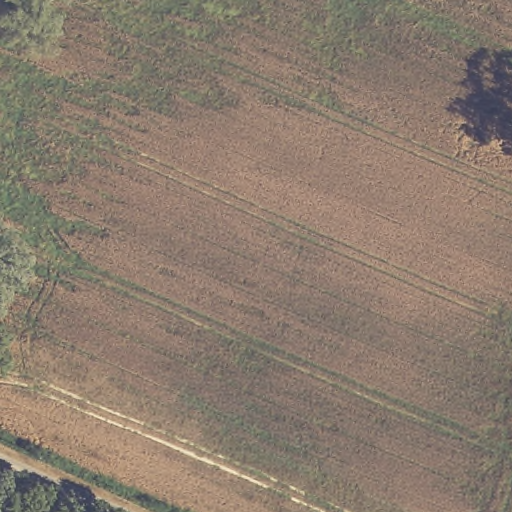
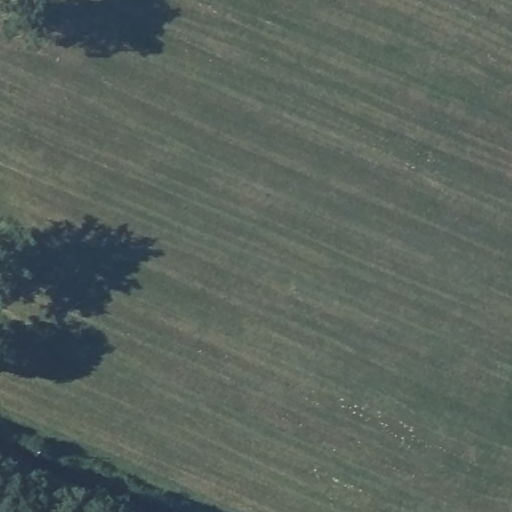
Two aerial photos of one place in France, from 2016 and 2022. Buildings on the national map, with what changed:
[]

